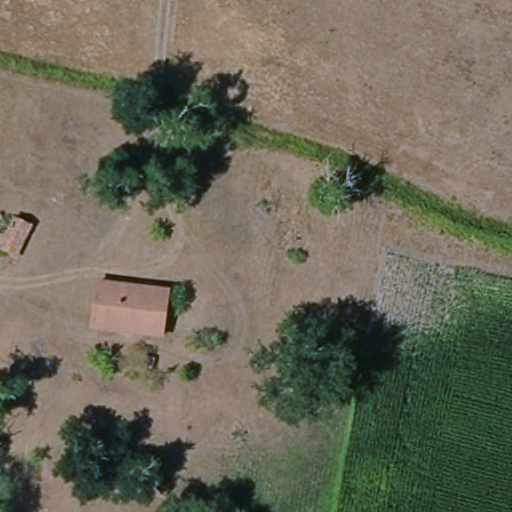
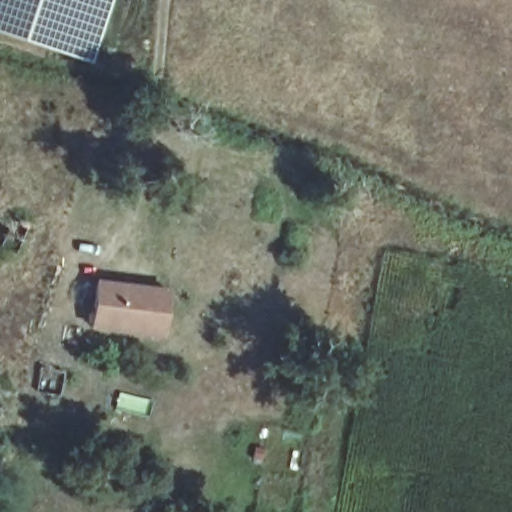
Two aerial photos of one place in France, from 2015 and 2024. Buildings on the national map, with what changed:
new [(0,32),(0,0),(109,0),(89,62),(0,32)]
unchanged [(11,261),(0,255),(0,217),(26,230),(11,261)]
unchanged [(95,327),(100,282),(166,292),(161,337),(95,327)]

